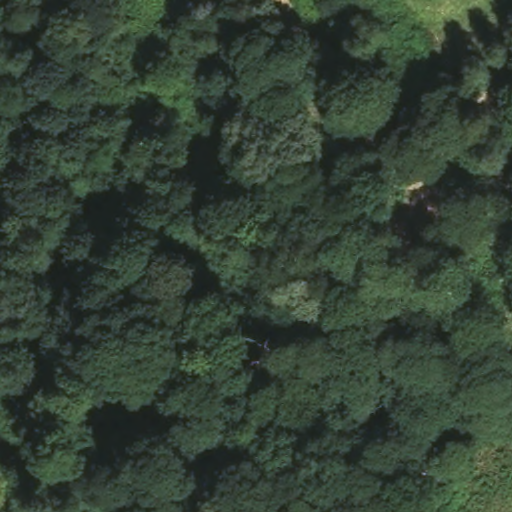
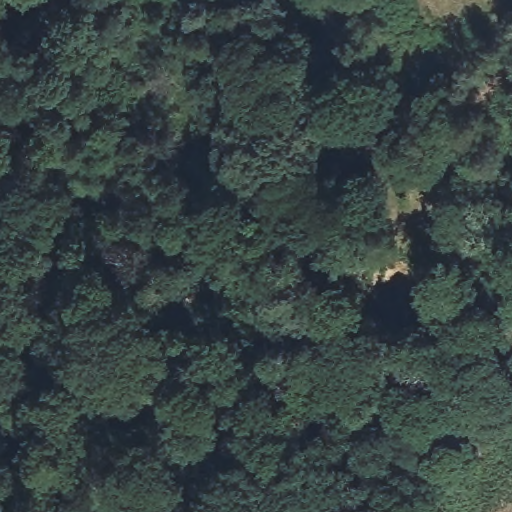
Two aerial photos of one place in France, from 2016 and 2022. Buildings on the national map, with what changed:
[]

